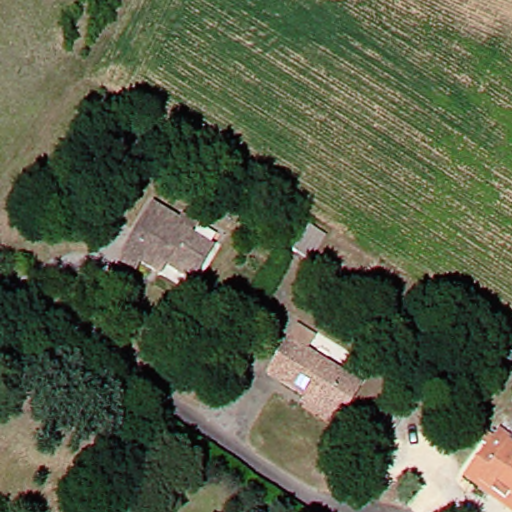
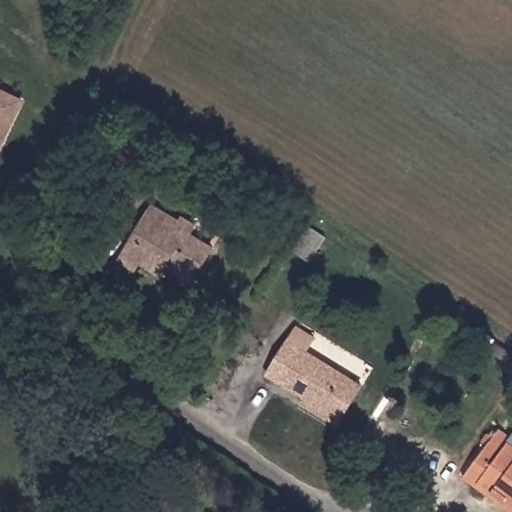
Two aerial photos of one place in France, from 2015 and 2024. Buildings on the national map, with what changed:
new [(0,88),(24,100),(0,146),(0,88)]
unchanged [(127,141),(144,150),(135,166),(118,157),(127,141)]
unchanged [(162,271),(145,261),(140,269),(127,261),(158,207),(185,223),(188,219),(200,226),(194,235),(217,248),(197,280),(172,265),(167,274),(162,271)]
unchanged [(308,403),(312,397),(275,374),(304,326),(321,337),(311,353),(365,386),(345,418),(342,424),(308,403)]
unchanged [(487,446),(482,443),(487,434),(492,437),(498,429),(511,438),(508,443),(512,446),(512,510),(477,485),(465,476),(487,446)]

